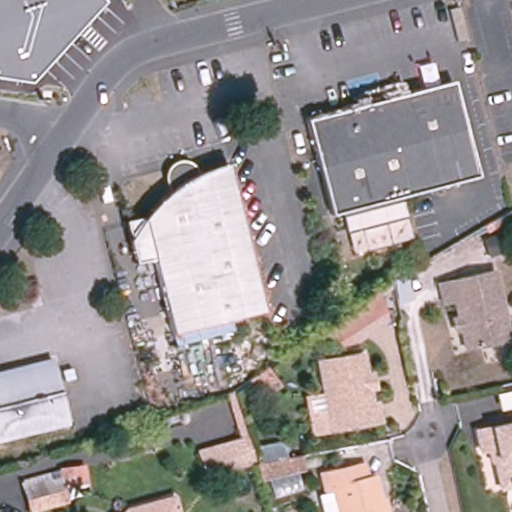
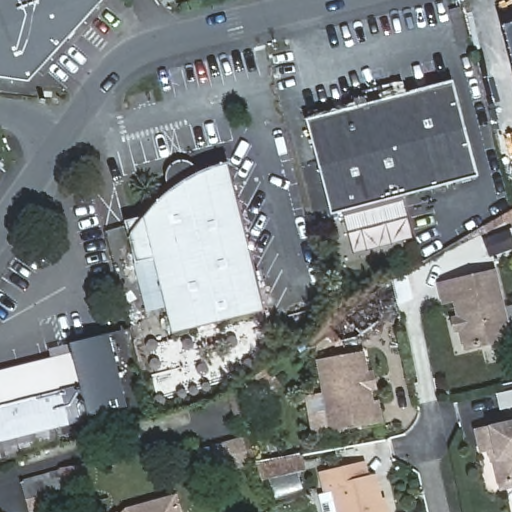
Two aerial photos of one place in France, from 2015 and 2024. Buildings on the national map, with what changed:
unchanged [(0,78),(0,0),(102,0),(27,82),(0,78)]
new [(501,26),(512,24),(512,68),(501,26)]
unchanged [(330,214),(305,119),(353,106),(350,94),(402,81),(405,93),(452,81),(477,176),(330,214)]
unchanged [(210,167),(217,164),(222,163),(227,162),(265,310),(171,333),(153,258),(135,262),(125,220),(142,216),(145,213),(149,208),(153,204),(156,201),(161,196),(167,191),(169,190),(165,180),(165,177),(165,175),(165,173),(166,170),(167,168),(168,166),(170,164),(171,162),(173,161),(175,160),(177,160),(179,160),(181,159),(184,160),(185,160),(188,161),(189,161),(191,162),(192,163),(194,164),(195,165),(195,167),(196,168),(197,172),(203,169),(210,167)]
unchanged [(512,239),(512,247),(490,255),(485,239),(509,230),(512,239)]
unchanged [(452,318),(458,317),(454,298),(443,301),(439,284),(494,271),(509,337),(465,347),(461,329),(455,330),(452,318)]
unchanged [(334,345),(322,326),(377,286),(385,321),(355,344),(334,345)]
new [(87,415),(88,418),(67,422),(52,360),(71,356),(69,344),(109,335),(126,407),(87,415)]
unchanged [(371,372),(373,387),(368,388),(371,403),(377,402),(380,420),(330,428),(318,361),(362,353),(366,373),(371,372)]
unchanged [(0,439),(0,373),(52,360),(67,422),(0,439)]
unchanged [(485,453),(476,455),(471,435),(512,426),(512,489),(496,492),(490,466),(486,465),(485,453)]
unchanged [(298,469),(260,477),(255,463),(295,455),(298,469)]
unchanged [(371,478),(380,476),(385,500),(388,499),(391,512),(327,512),(323,494),(330,492),(326,474),(368,464),(371,478)]
unchanged [(84,480),(62,483),(60,469),(81,466),(84,480)]
unchanged [(56,502),(31,511),(21,481),(47,473),(56,502)]
unchanged [(126,509),(173,497),(177,512),(123,512),(126,509)]

